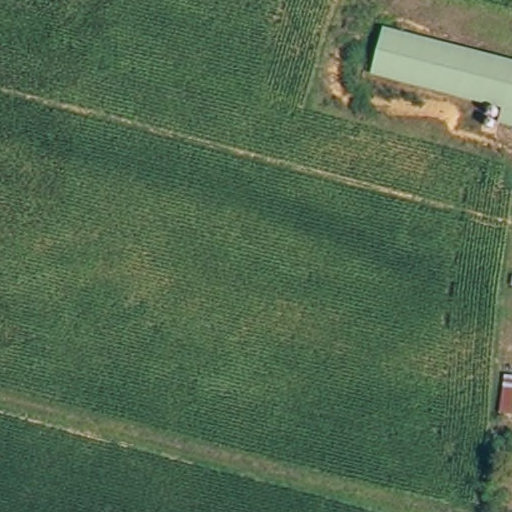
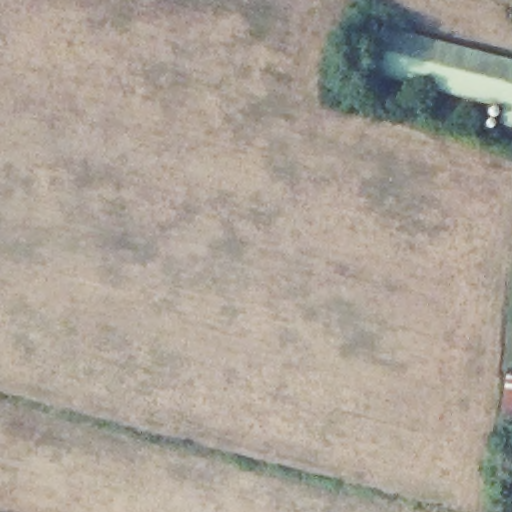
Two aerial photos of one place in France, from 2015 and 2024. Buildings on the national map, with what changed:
unchanged [(499,118),(503,103),(370,69),(382,23),(512,57),(512,121),(499,118)]

